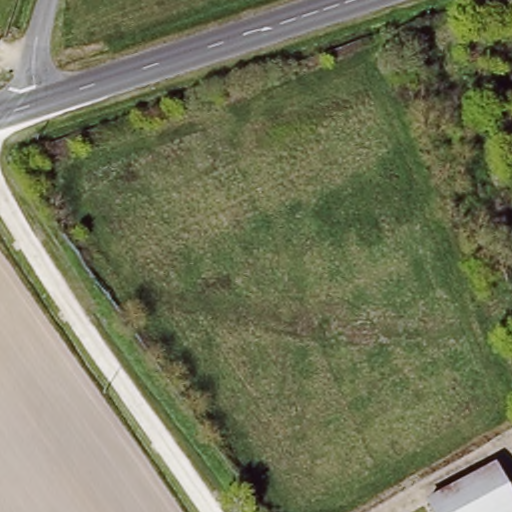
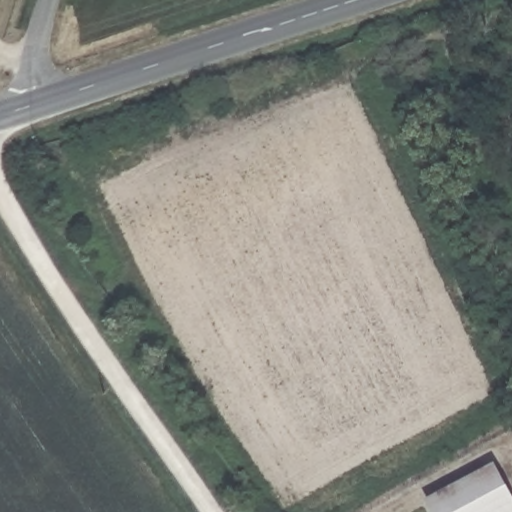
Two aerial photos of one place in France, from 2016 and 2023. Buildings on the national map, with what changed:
unchanged [(512,493),(512,512),(431,512),(424,497),(495,461),(512,493)]

